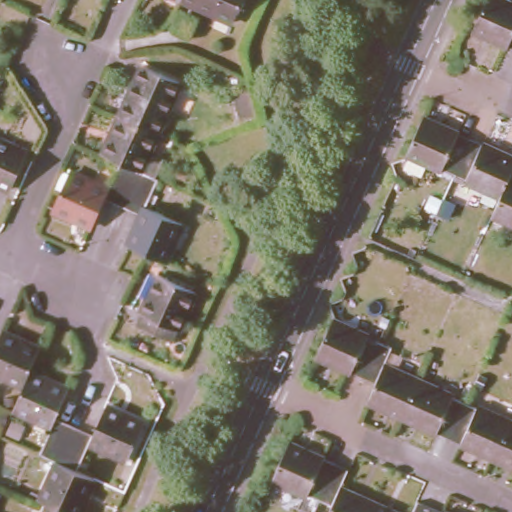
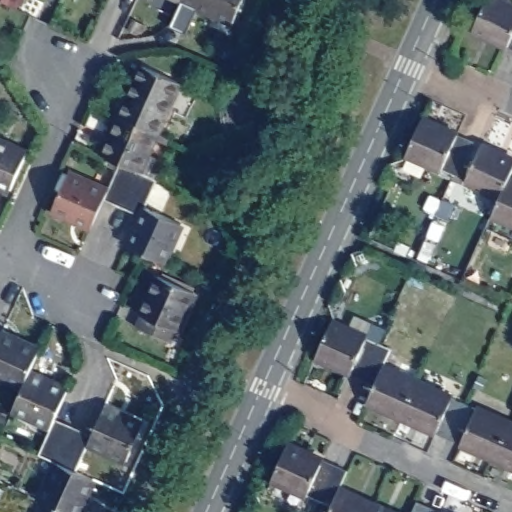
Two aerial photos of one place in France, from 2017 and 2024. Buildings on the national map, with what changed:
unchanged [(190,0),(247,0),(237,22),(190,0)]
unchanged [(480,13),(485,0),(500,0),(512,5),(512,50),(471,32),(480,13)]
unchanged [(180,77),(157,129),(122,113),(145,61),(180,77)]
unchanged [(140,167),(146,171),(131,206),(117,200),(133,164),(121,159),(105,152),(122,113),(157,129),(140,167)]
unchanged [(405,151),(421,115),(466,136),(451,171),(405,151)]
unchanged [(512,157),(512,163),(507,175),(499,192),(451,171),(466,136),(512,157)]
unchanged [(15,189),(0,182),(0,137),(32,151),(15,189)]
unchanged [(105,194),(93,222),(55,204),(70,169),(109,186),(121,159),(133,164),(117,200),(105,194)]
unchanged [(142,211),(131,206),(146,171),(158,176),(147,203),(181,219),(164,257),(147,250),(129,242),(142,211)]
unchanged [(499,192),(507,175),(512,177),(512,221),(490,211),(499,192)]
unchanged [(159,272),(195,288),(172,338),(137,322),(159,272)]
unchanged [(314,353),(330,317),(378,338),(362,375),(314,353)]
unchanged [(2,328),(40,346),(30,368),(24,382),(0,372),(0,332),(2,328)]
unchanged [(375,381),(362,375),(378,338),(390,344),(383,362),(418,378),(401,415),(365,399),(375,381)]
unchanged [(13,405),(24,382),(30,368),(67,386),(55,414),(67,420),(51,455),(38,450),(51,422),(13,405)]
unchanged [(464,400),(448,437),(401,415),(418,378),(464,400)]
unchanged [(495,458),(448,437),(464,400),(512,422),(495,458)]
unchanged [(82,426),(94,432),(107,403),(143,420),(127,456),(91,440),(78,468),(65,462),(82,426)]
unchanged [(82,426),(65,462),(78,468),(95,476),(79,512),(75,512),(51,501),(41,497),(57,458),(51,455),(67,420),(82,426)]
unchanged [(512,466),(495,458),(512,422),(512,466)]
unchanged [(272,479),(287,444),(334,466),(318,501),(272,479)]
unchanged [(330,507),(318,501),(334,466),(347,472),(338,488),(372,505),(369,512),(328,512),(330,507)]
unchanged [(51,501),(75,512),(46,512),(51,501)]
unchanged [(427,512),(412,512),(417,503),(428,509),(427,512)]
unchanged [(372,505),(388,512),(369,512),(372,505)]
unchanged [(428,509),(435,512),(427,512),(428,509)]

